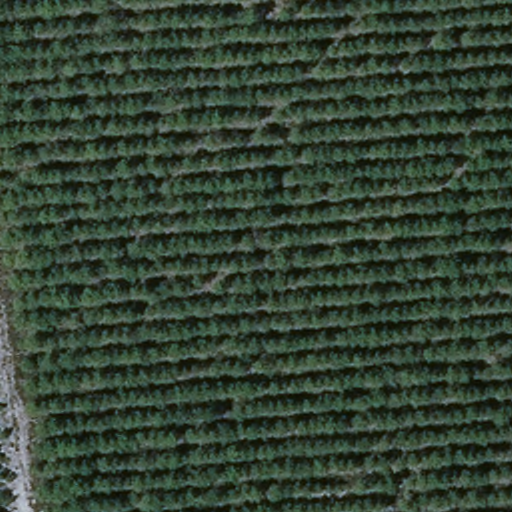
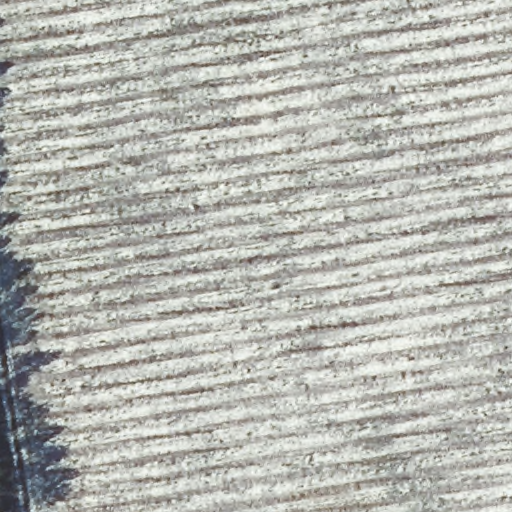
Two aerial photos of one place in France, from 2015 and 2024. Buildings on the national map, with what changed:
unchanged [(333,512),(287,512),(332,504),(333,512)]

